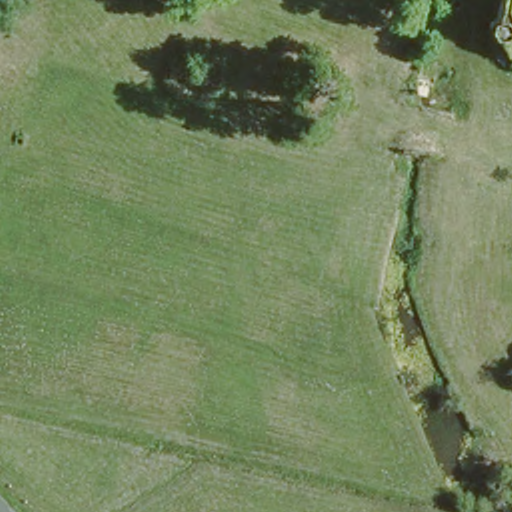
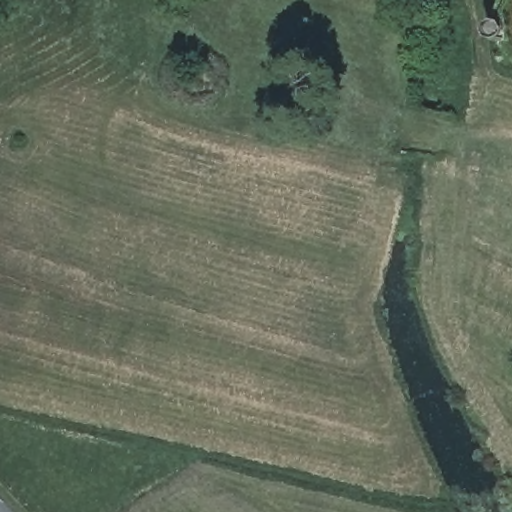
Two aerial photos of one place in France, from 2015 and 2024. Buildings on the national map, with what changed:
unchanged [(508,71),(497,80),(483,63),(494,55),(508,71)]

